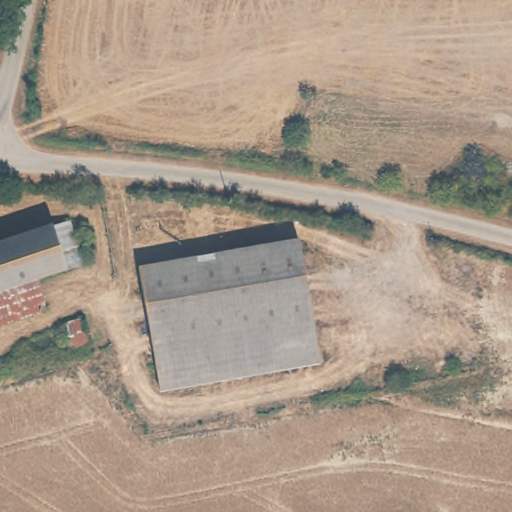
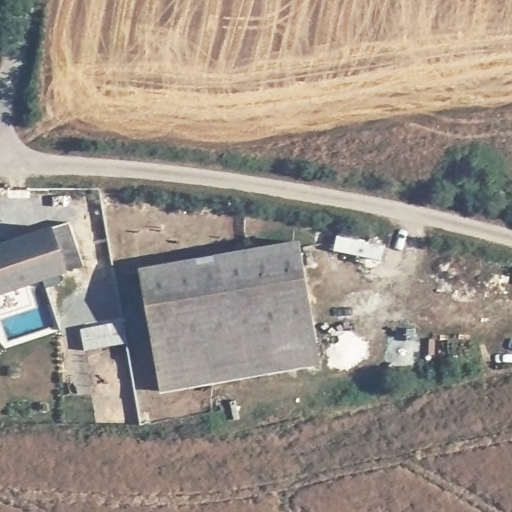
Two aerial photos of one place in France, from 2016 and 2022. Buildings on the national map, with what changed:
unchanged [(72,274),(21,291),(0,298),(0,252),(59,233),(72,274)]
unchanged [(297,254),(318,373),(159,401),(147,339),(137,283),(218,268),(297,254)]

